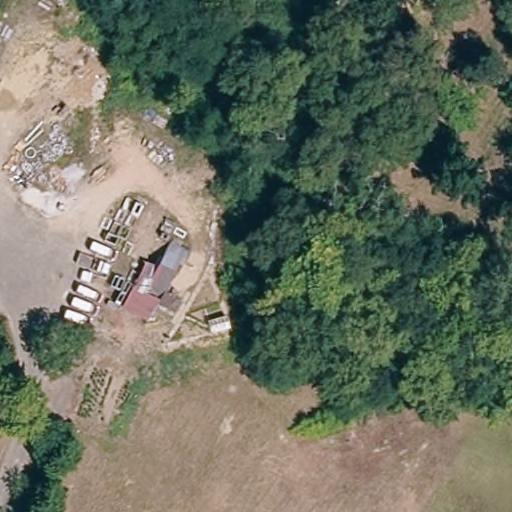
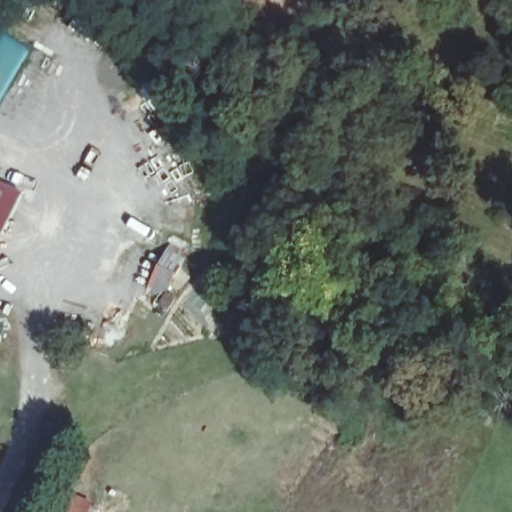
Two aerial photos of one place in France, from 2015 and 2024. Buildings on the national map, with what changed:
new [(0,248),(0,177),(26,190),(0,248)]
unchanged [(161,239),(190,251),(170,293),(182,301),(178,311),(163,307),(153,323),(124,308),(161,239)]

